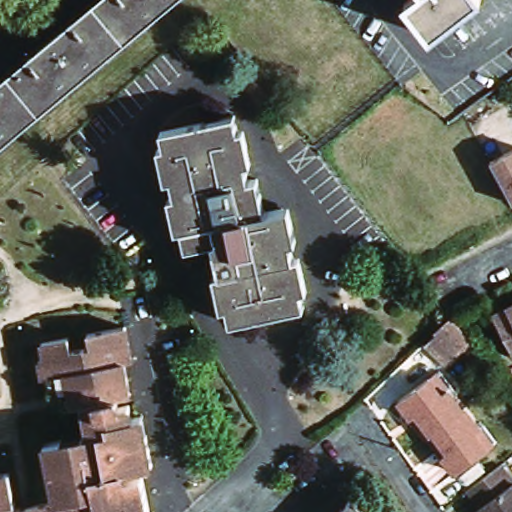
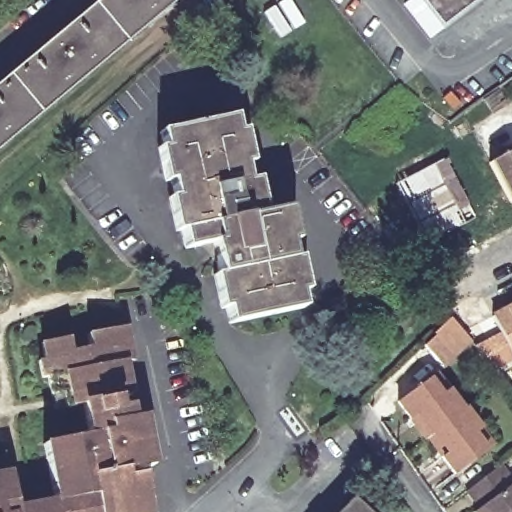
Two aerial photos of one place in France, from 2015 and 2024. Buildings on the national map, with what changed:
unchanged [(33,64),(29,59),(73,21),(77,26),(107,0),(180,0),(0,153),(0,92),(33,64)]
unchanged [(426,42),(401,8),(411,0),(473,0),(476,5),(426,42)]
unchanged [(251,183),(258,182),(265,214),(283,210),(306,309),(231,326),(213,249),(188,255),(161,135),(235,116),(251,183)]
unchanged [(512,150),(512,193),(494,159),(512,150)]
new [(446,156),(470,204),(477,217),(427,242),(396,183),(432,163),(446,156)]
unchanged [(512,311),(512,362),(492,321),(512,311)]
unchanged [(471,344),(450,370),(435,341),(433,338),(452,320),(471,344)]
unchanged [(7,476),(15,512),(34,508),(53,504),(42,446),(60,442),(61,446),(81,442),(80,438),(87,437),(80,406),(65,410),(52,413),(49,397),(45,379),(38,380),(35,364),(41,362),(38,347),(65,342),(68,355),(86,352),(83,338),(122,329),(129,360),(120,362),(124,382),(127,396),(113,399),(115,409),(126,408),(128,420),(134,419),(138,438),(145,436),(150,468),(126,473),(128,482),(144,478),(151,512),(0,512),(0,477),(7,476)]
unchanged [(497,442),(455,476),(441,459),(446,454),(415,416),(410,421),(396,403),(437,370),(497,442)]
unchanged [(478,510),(465,491),(502,464),(512,478),(512,512),(475,512),(478,510)]
unchanged [(352,504),(361,512),(344,512),(352,504)]

